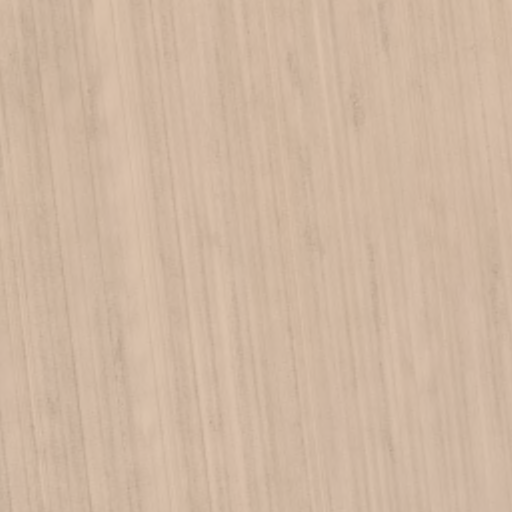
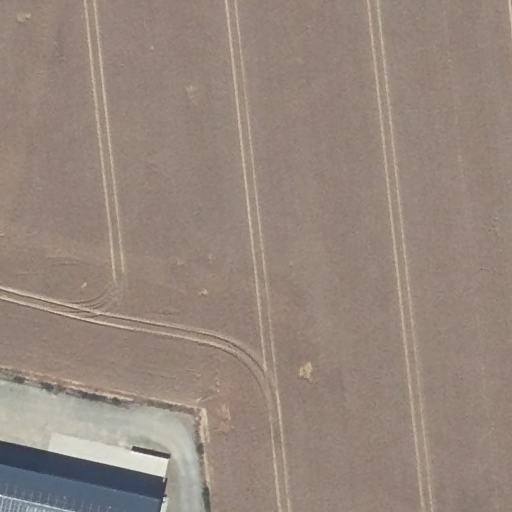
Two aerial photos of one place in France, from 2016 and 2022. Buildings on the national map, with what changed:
new [(157,512),(0,512),(0,461),(160,497),(157,512)]

